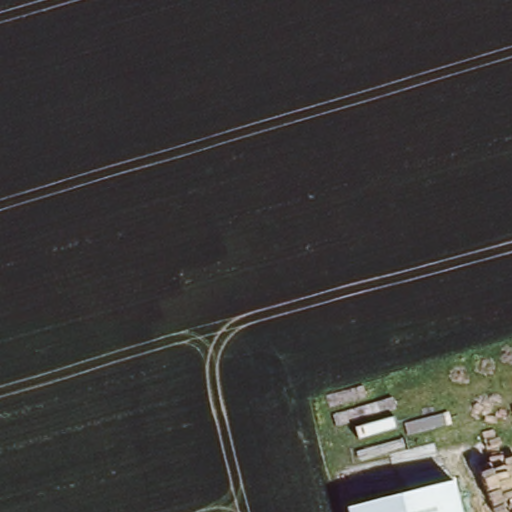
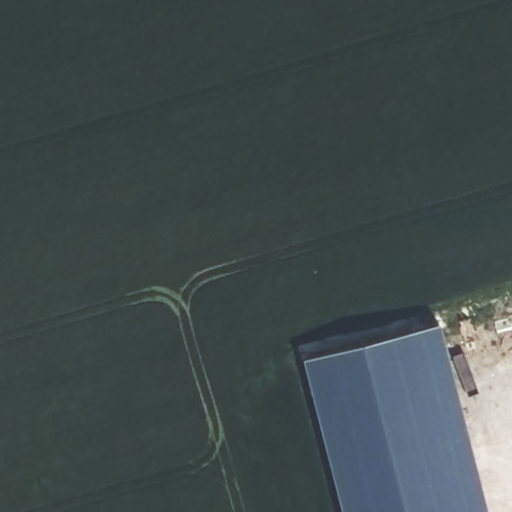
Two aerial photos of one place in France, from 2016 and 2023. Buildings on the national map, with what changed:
new [(439,325),(486,512),(342,512),(303,358),(439,325)]
demolished [(462,512),(349,512),(347,506),(453,478),(462,512)]

